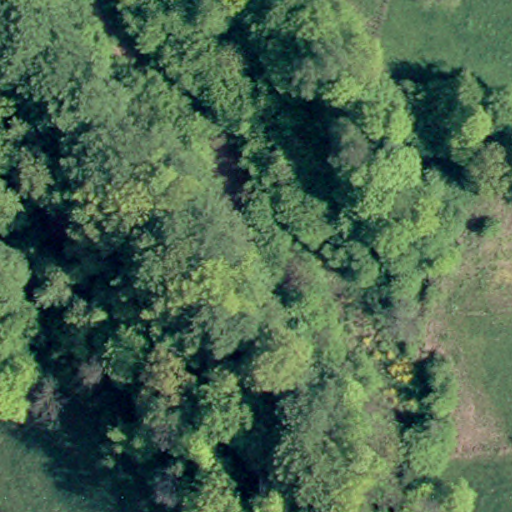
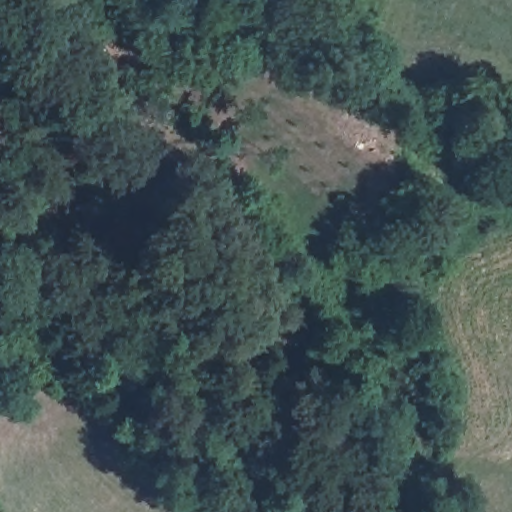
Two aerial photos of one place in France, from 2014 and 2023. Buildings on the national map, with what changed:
[]

